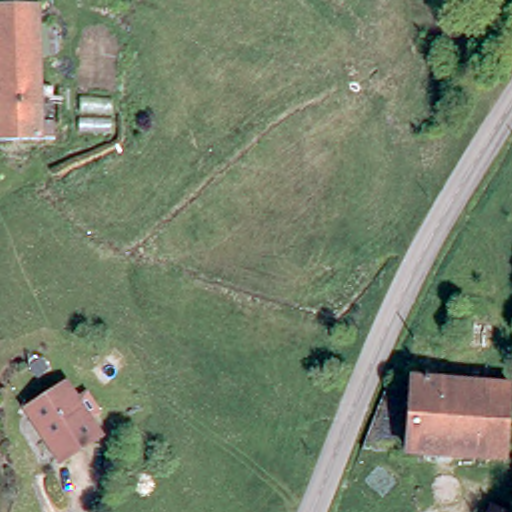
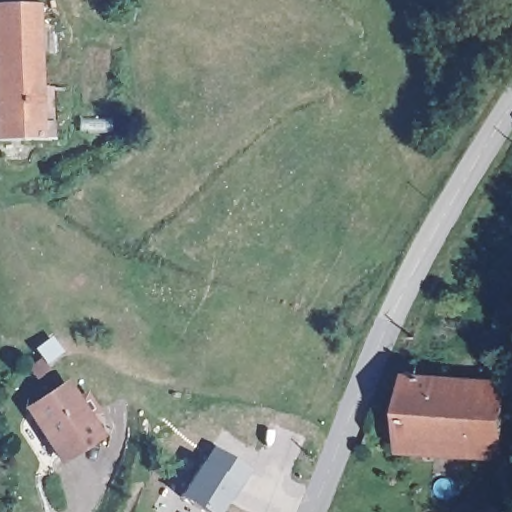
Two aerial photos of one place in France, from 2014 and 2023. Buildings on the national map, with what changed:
unchanged [(476,0),(494,0),(489,8),(476,0)]
unchanged [(0,83),(0,2),(13,1),(16,84),(0,83)]
unchanged [(16,84),(13,1),(27,1),(29,84),(16,84)]
unchanged [(0,134),(0,83),(16,84),(29,84),(29,115),(28,134),(0,134)]
unchanged [(512,294),(512,308),(507,300),(512,294)]
unchanged [(504,457),(402,450),(413,376),(510,380),(504,457)]
unchanged [(63,390),(89,436),(53,459),(26,412),(63,390)]
new [(226,499),(216,512),(201,512),(178,496),(201,464),(204,465),(216,449),(248,473),(236,490),(228,501),(226,499)]
unchanged [(483,501),(501,512),(477,512),(483,501)]

